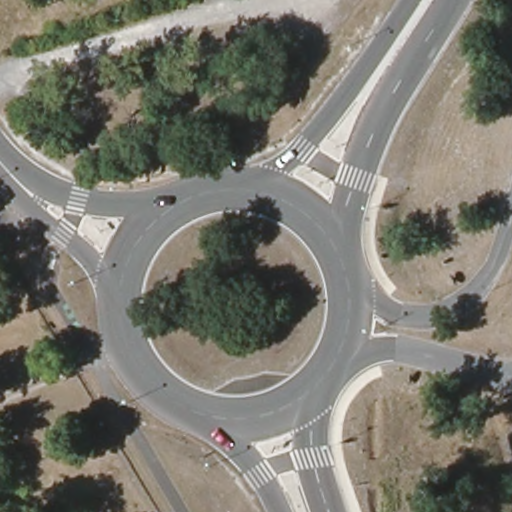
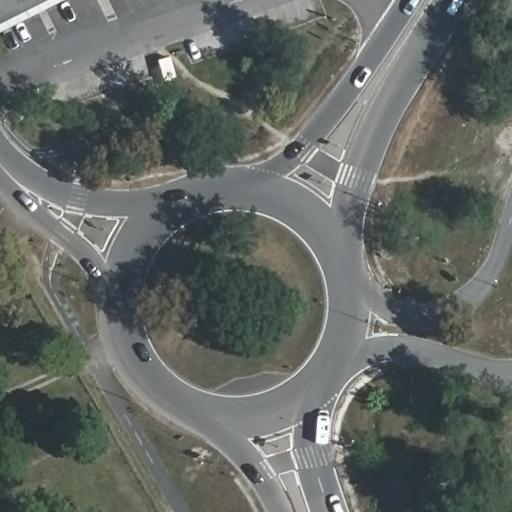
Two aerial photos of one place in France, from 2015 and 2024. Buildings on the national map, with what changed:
new [(0,26),(0,0),(50,0),(0,26)]

